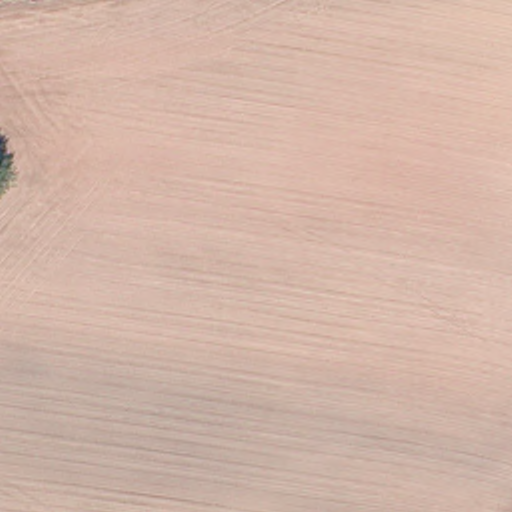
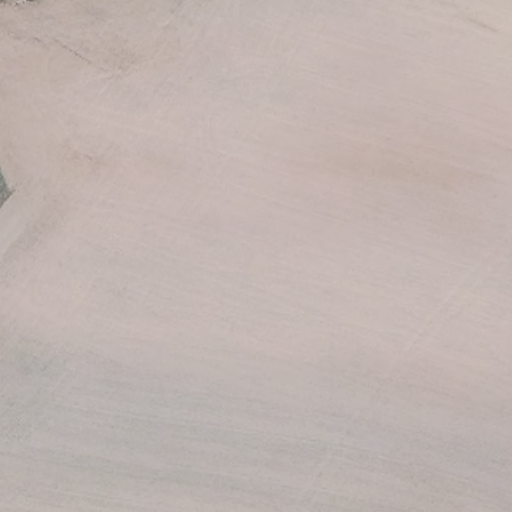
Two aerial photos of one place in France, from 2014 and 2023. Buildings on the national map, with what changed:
[]

